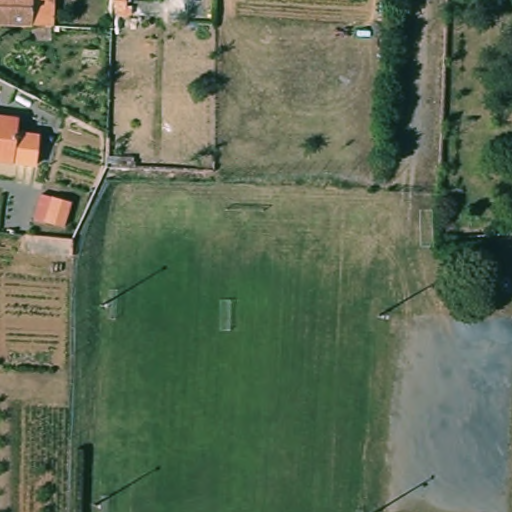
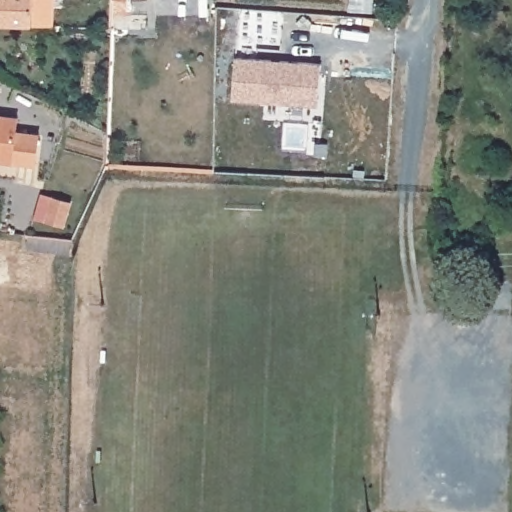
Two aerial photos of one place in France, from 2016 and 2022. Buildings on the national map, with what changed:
unchanged [(30,27),(0,25),(0,0),(31,0),(30,16),(30,27)]
unchanged [(31,0),(53,0),(51,29),(30,27),(30,16),(31,0)]
unchanged [(104,12),(105,0),(123,0),(122,13),(104,12)]
new [(238,66),(324,71),(322,113),(235,108),(238,66)]
unchanged [(13,128),(36,131),(32,157),(0,154),(0,112),(15,114),(13,128)]
unchanged [(56,191),(78,197),(69,226),(47,219),(56,191)]

